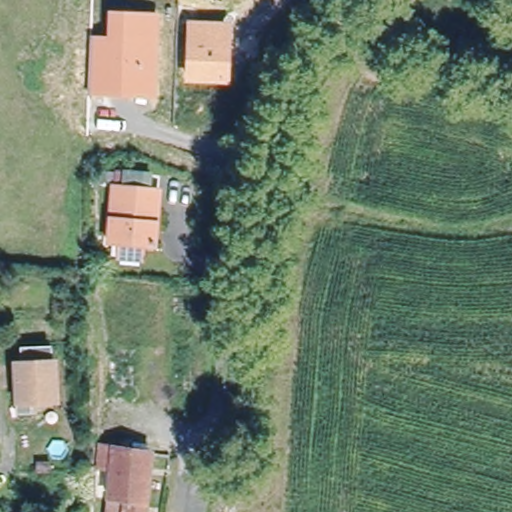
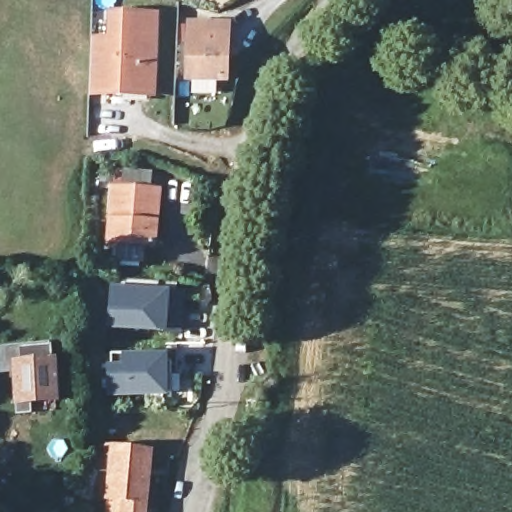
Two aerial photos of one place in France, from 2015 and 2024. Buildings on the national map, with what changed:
unchanged [(161,13),(158,97),(89,95),(91,35),(109,36),(110,10),(161,13)]
unchanged [(233,23),(229,85),(184,83),(188,20),(233,23)]
unchanged [(123,258),(123,244),(110,242),(114,187),(124,187),(124,173),(154,174),(154,189),(160,189),(155,246),(143,245),(141,259),(123,258)]
new [(183,334),(169,333),(108,328),(111,285),(116,285),(117,278),(158,281),(156,289),(170,291),(186,291),(183,334)]
demolished [(111,398),(113,348),(139,349),(140,399),(111,398)]
new [(108,365),(113,364),(113,353),(169,354),(169,397),(108,397),(108,365)]
unchanged [(61,401),(55,408),(34,409),(34,420),(22,419),(21,376),(25,371),(25,356),(55,355),(55,369),(60,370),(61,401)]
unchanged [(151,512),(128,512),(129,498),(109,495),(108,470),(94,468),(96,440),(154,449),(151,512)]

